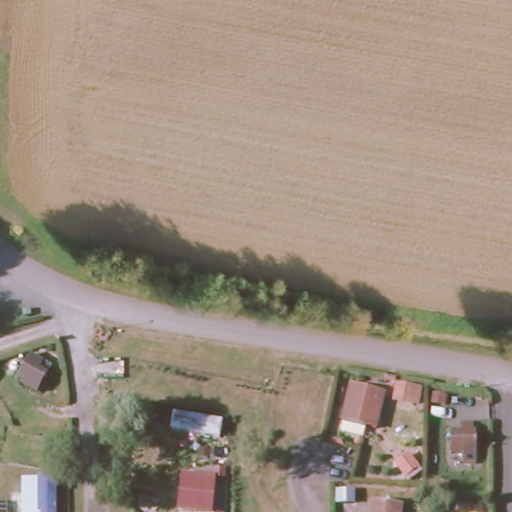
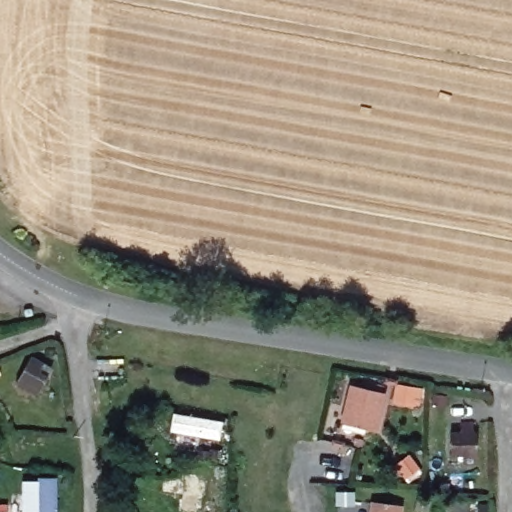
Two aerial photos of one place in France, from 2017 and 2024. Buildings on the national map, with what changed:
unchanged [(14,377),(29,360),(50,375),(36,393),(14,377)]
unchanged [(372,426),(340,418),(349,384),(385,391),(372,426)]
unchanged [(392,403),(391,385),(420,386),(418,405),(392,403)]
unchanged [(474,422),(475,463),(462,463),(462,453),(451,452),(451,430),(460,427),(458,420),(474,422)]
unchanged [(26,475),(53,477),(51,512),(25,512),(26,475)]
unchanged [(368,500),(397,502),(397,512),(367,512),(368,500)]

